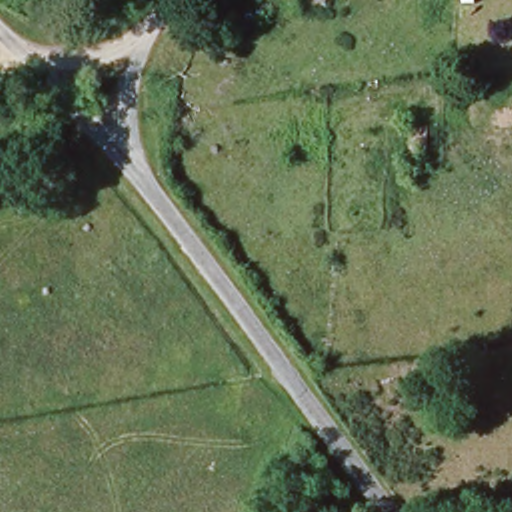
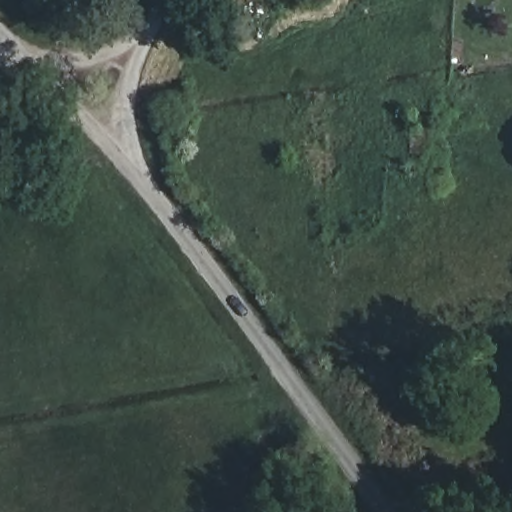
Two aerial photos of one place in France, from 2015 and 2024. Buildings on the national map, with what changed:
unchanged [(422,123),(424,123),(424,154),(407,154),(409,124),(422,123)]

